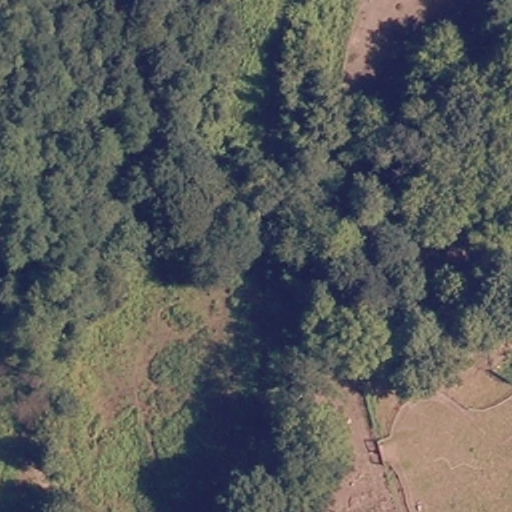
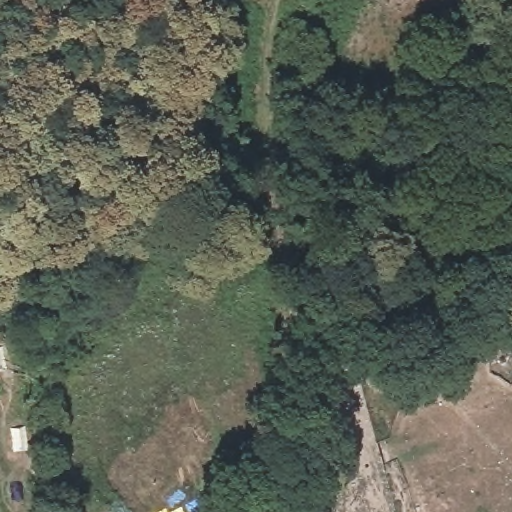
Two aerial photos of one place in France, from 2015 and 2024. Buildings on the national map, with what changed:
[]

